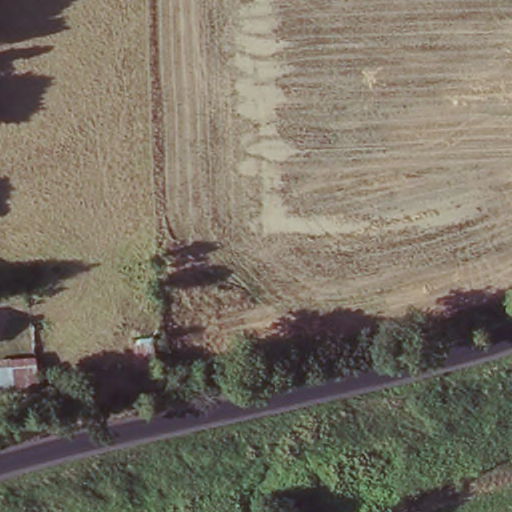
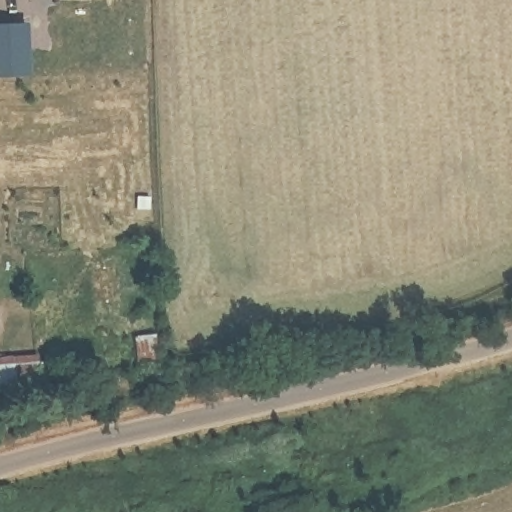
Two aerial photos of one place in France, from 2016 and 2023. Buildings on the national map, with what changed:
new [(23,24),(26,77),(0,78),(0,25),(23,24)]
unchanged [(45,351),(47,380),(0,388),(0,358),(45,351)]

